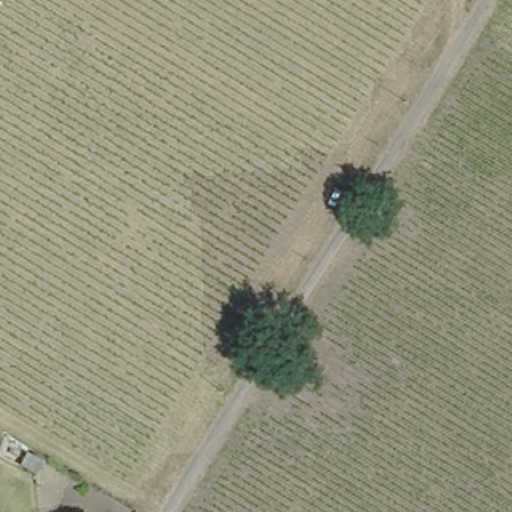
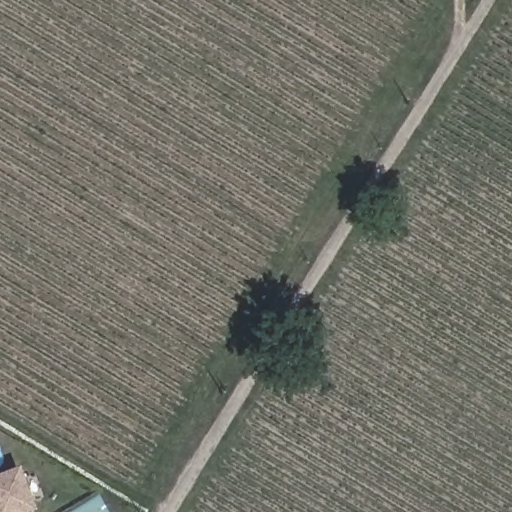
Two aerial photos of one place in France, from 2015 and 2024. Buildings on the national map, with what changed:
new [(32,512),(0,512),(0,474),(19,467),(35,511),(32,512)]

